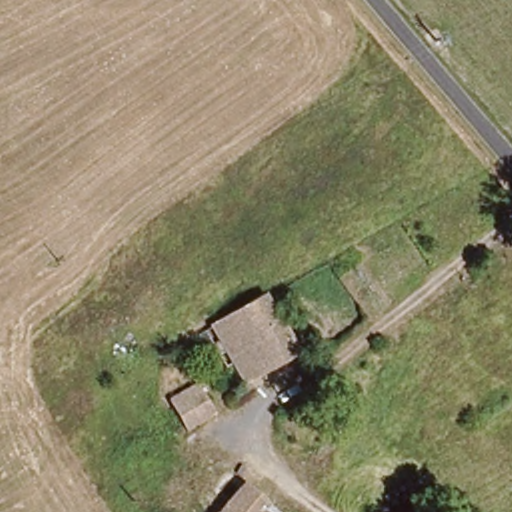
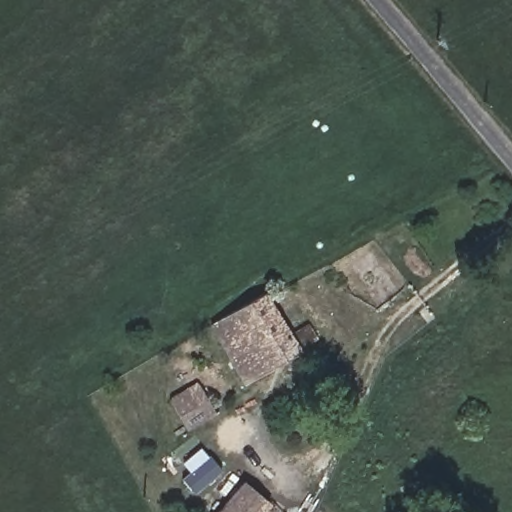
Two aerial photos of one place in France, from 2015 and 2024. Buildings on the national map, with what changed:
unchanged [(254,299),(278,343),(298,332),(306,347),(235,387),(202,329),(254,299)]
unchanged [(214,414),(186,430),(170,402),(198,386),(214,414)]
unchanged [(243,486),(274,512),(221,512),(243,486)]

